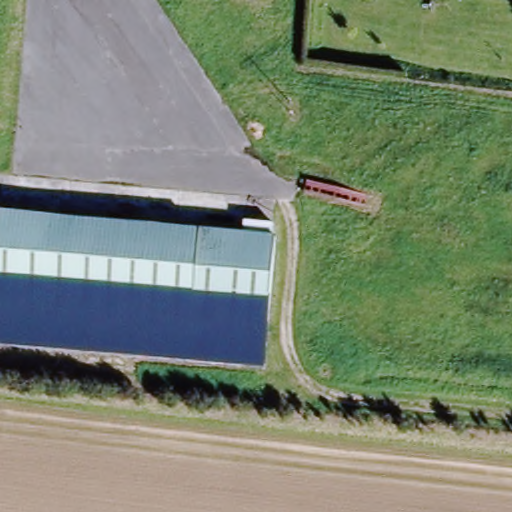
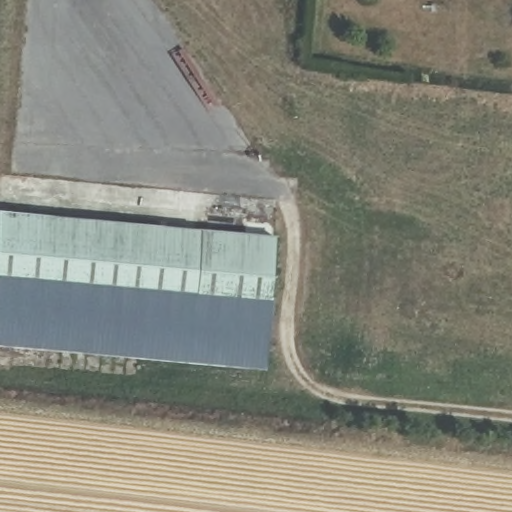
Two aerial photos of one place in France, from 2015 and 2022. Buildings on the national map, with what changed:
unchanged [(273,237),(262,370),(0,347),(0,213),(273,237)]

